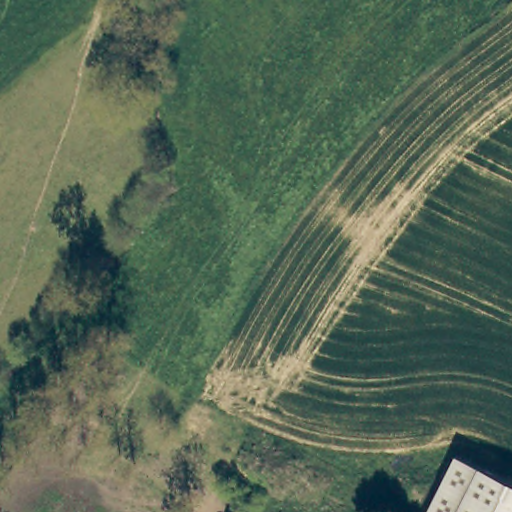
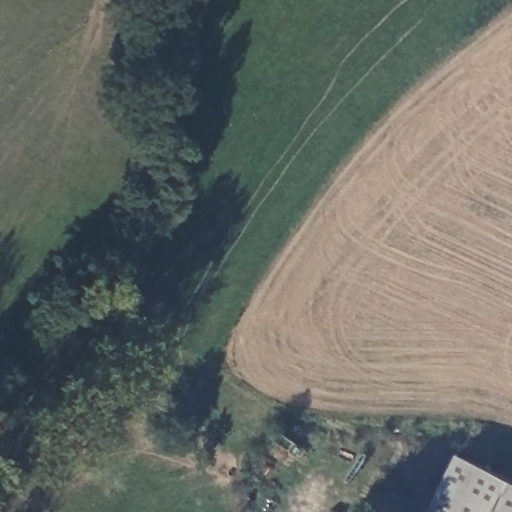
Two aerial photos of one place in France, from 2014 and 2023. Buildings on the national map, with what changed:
unchanged [(461,454),(512,479),(512,512),(431,512),(461,454)]

